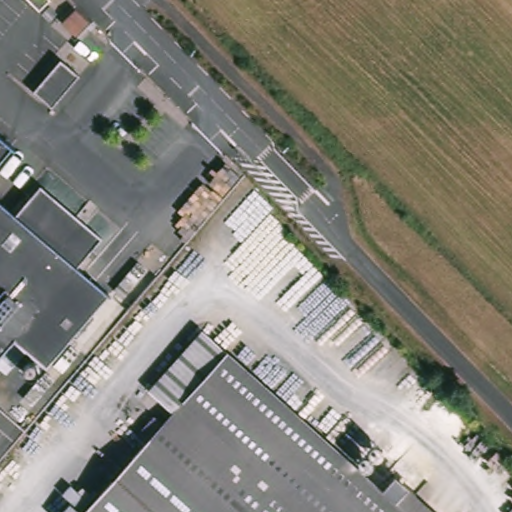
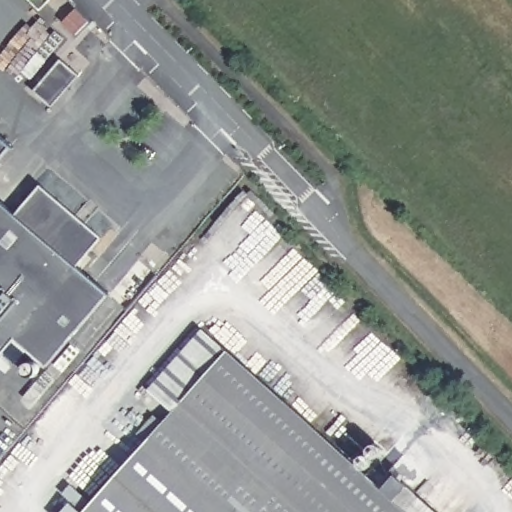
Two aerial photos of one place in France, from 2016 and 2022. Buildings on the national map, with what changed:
unchanged [(44,3),(46,0),(57,0),(65,7),(58,15),(44,3)]
unchanged [(95,34),(86,46),(77,39),(74,35),(84,24),(95,34)]
unchanged [(81,74),(49,111),(31,96),(45,82),(65,59),(81,74)]
unchanged [(0,174),(0,137),(18,154),(0,174)]
unchanged [(39,194),(99,248),(74,276),(104,304),(41,374),(21,355),(1,378),(0,377),(0,210),(14,222),(39,194)]
unchanged [(228,349),(408,512),(82,512),(228,349)]
unchanged [(22,369),(23,369),(24,368),(25,368),(26,368),(28,368),(29,368),(29,369),(30,369),(31,369),(31,370),(31,371),(32,371),(33,372),(33,373),(33,374),(34,374),(34,375),(34,376),(34,377),(33,377),(33,378),(33,379),(32,379),(31,380),(31,381),(30,382),(29,382),(29,383),(28,383),(27,383),(26,383),(25,383),(24,383),(23,382),(22,382),(21,382),(21,381),(20,380),(20,379),(19,379),(19,378),(19,377),(19,376),(19,375),(19,374),(19,373),(19,372),(20,372),(20,371),(21,370),(21,369),(22,369)]

